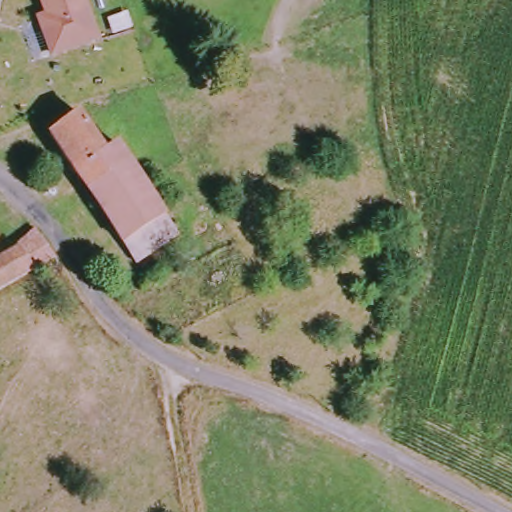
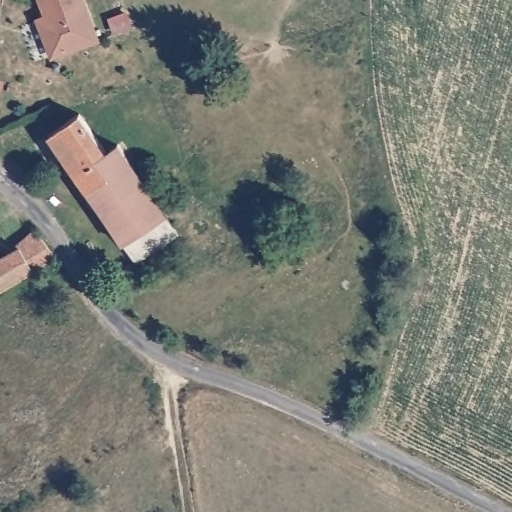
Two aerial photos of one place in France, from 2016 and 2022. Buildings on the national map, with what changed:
unchanged [(55,56),(46,28),(52,26),(42,0),(87,0),(101,39),(55,56)]
unchanged [(138,266),(126,249),(50,134),(77,116),(105,157),(116,149),(165,222),(176,238),(138,266)]
unchanged [(39,275),(1,293),(0,291),(0,267),(26,252),(45,234),(60,255),(39,275)]
unchanged [(0,237),(0,235),(1,237),(0,237)]

